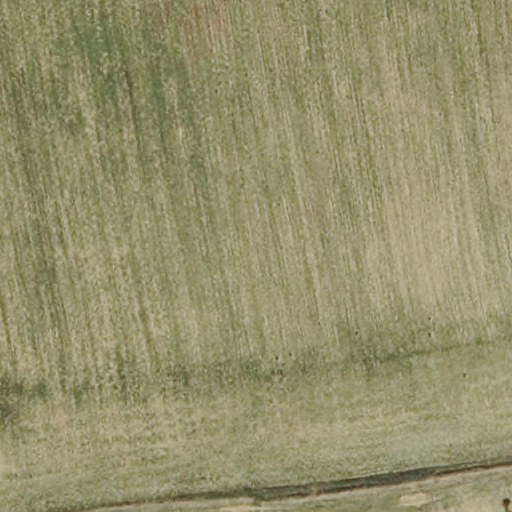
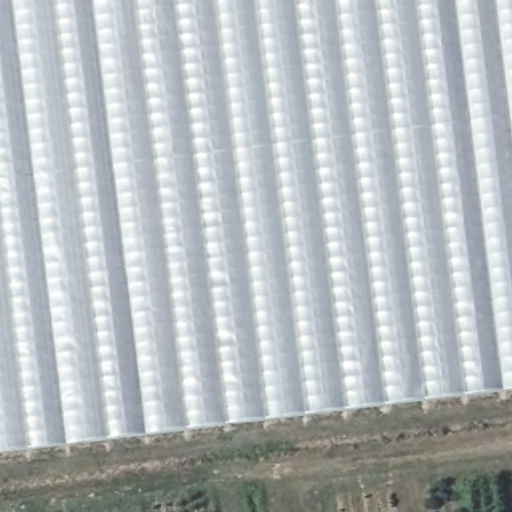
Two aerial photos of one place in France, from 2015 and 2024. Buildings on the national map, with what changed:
demolished [(268,355),(0,389),(0,0),(199,0),(268,355)]
new [(512,393),(0,455),(0,0),(512,0),(512,393)]

